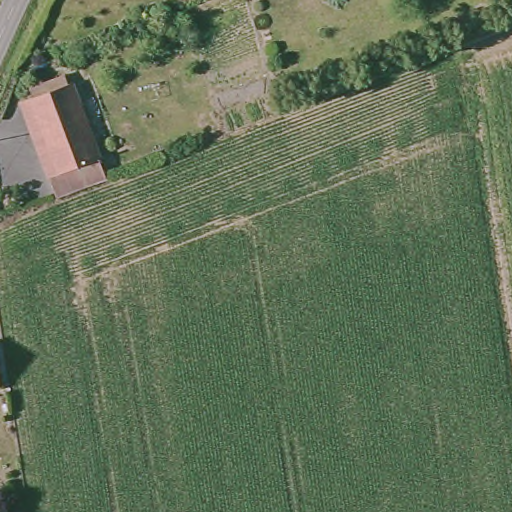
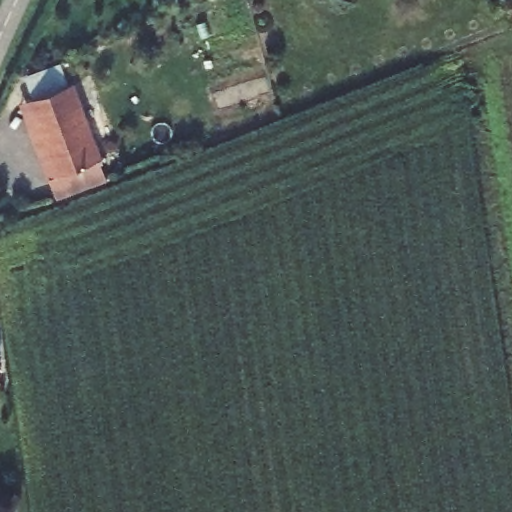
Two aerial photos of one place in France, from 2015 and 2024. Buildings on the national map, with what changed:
unchanged [(55,200),(31,142),(17,102),(27,99),(24,88),(65,73),(69,83),(107,181),(55,200)]

